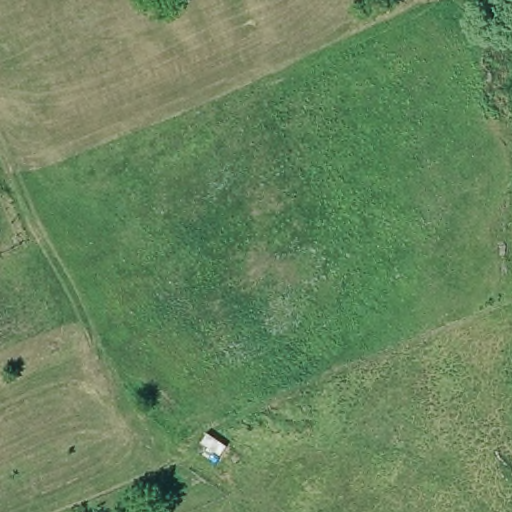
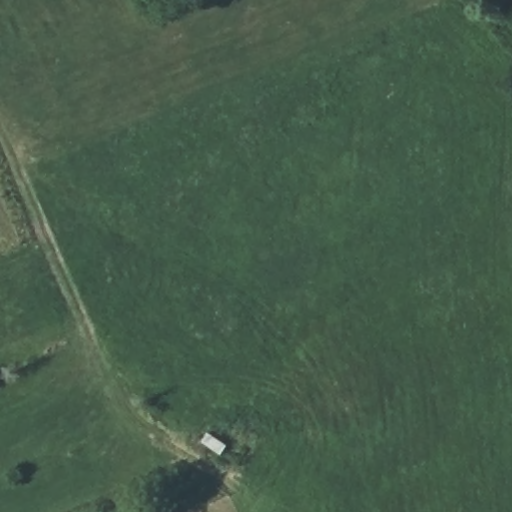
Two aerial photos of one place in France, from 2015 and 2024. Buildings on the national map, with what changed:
[]

